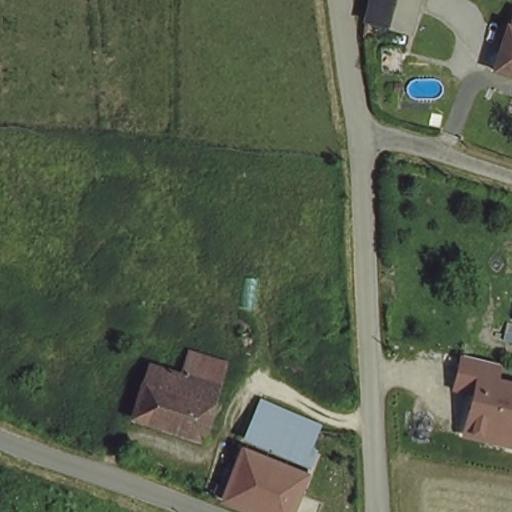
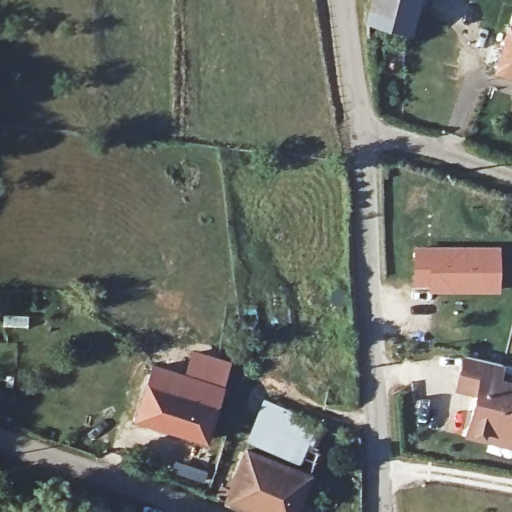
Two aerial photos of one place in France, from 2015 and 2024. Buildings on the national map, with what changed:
unchanged [(405,34),(364,22),(371,0),(418,0),(405,34)]
unchanged [(493,65),(506,24),(508,25),(512,9),(512,76),(492,71),(493,65)]
new [(500,247),(499,292),(427,292),(428,286),(412,285),(413,246),(500,247)]
unchanged [(135,418),(153,362),(186,370),(191,352),(229,362),(224,378),(211,439),(135,418)]
unchanged [(501,378),(512,381),(512,447),(465,436),(471,397),(457,392),(458,372),(463,356),(502,365),(501,378)]
unchanged [(316,417),(301,480),(238,462),(254,402),(316,417)]
unchanged [(292,512),(235,512),(226,510),(238,462),(301,480),(292,512)]

